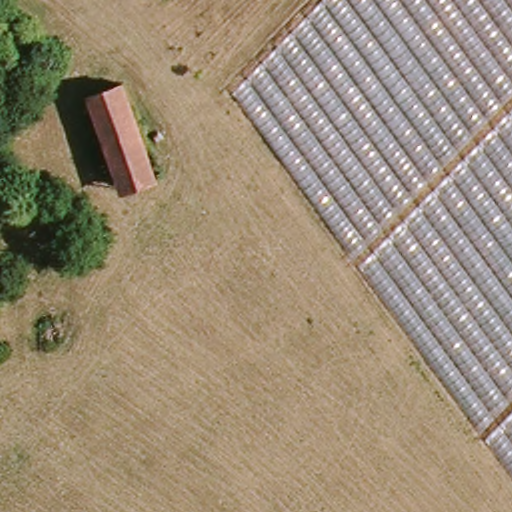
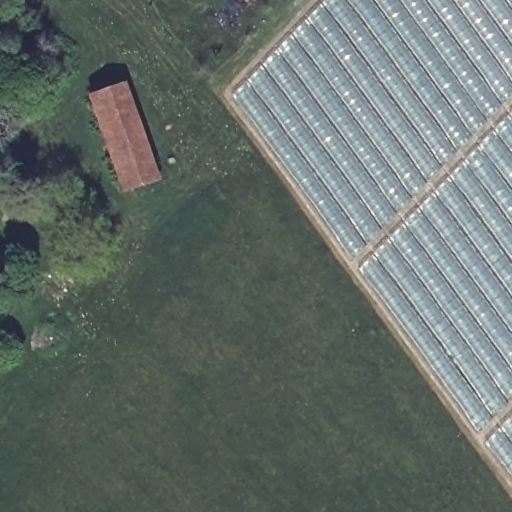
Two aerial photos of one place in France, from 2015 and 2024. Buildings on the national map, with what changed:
unchanged [(331,0),(512,0),(512,469),(236,95),(331,0)]
unchanged [(122,89),(155,182),(123,194),(87,100),(122,89)]

